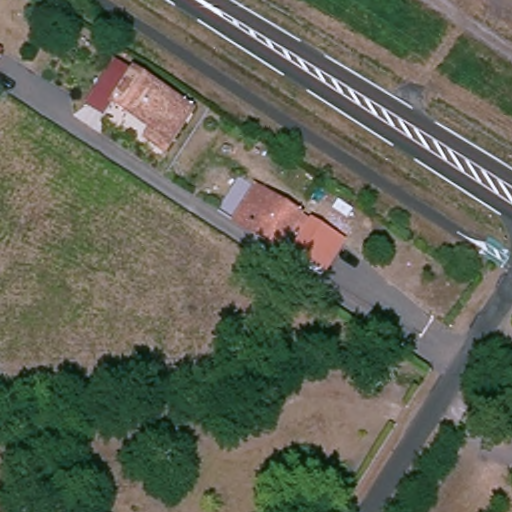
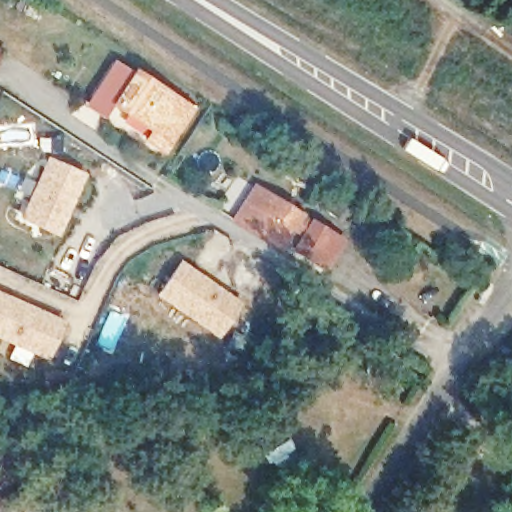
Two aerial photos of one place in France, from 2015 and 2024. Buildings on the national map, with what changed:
unchanged [(144,130),(106,105),(113,109),(105,120),(85,106),(115,63),(129,72),(187,110),(160,151),(140,136),(144,130)]
new [(45,156),(87,174),(59,236),(18,218),(45,156)]
unchanged [(243,203),(255,185),(299,215),(276,249),(254,234),(232,218),(243,203)]
unchanged [(347,242),(327,273),(295,244),(300,238),(288,230),(299,215),(347,242)]
new [(180,258),(244,301),(219,339),(155,295),(180,258)]
new [(64,319),(45,360),(31,353),(25,367),(5,358),(11,345),(0,339),(0,290),(64,319)]

